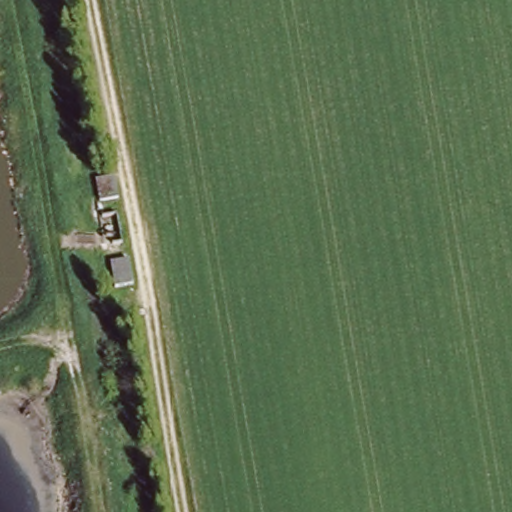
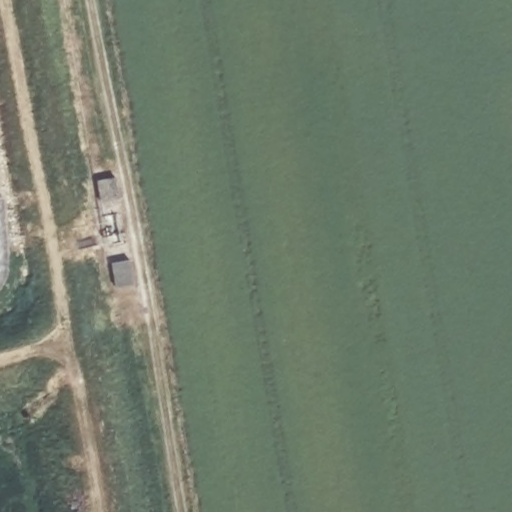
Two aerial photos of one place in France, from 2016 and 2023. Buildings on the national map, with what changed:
unchanged [(98,179),(116,175),(120,203),(102,206),(98,179)]
unchanged [(133,262),(135,284),(117,289),(110,265),(133,262)]

